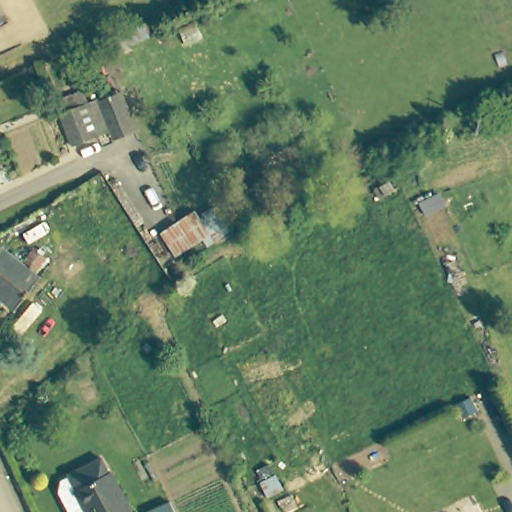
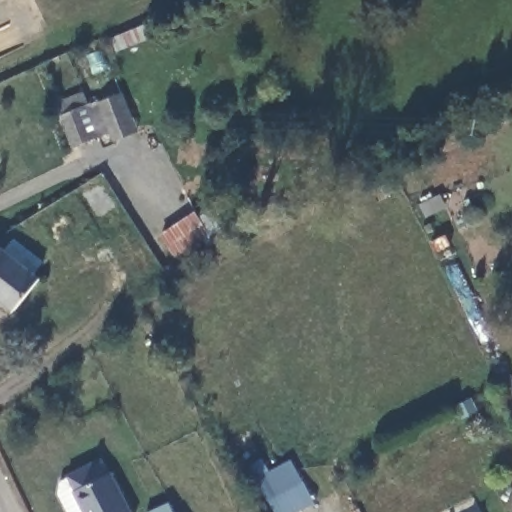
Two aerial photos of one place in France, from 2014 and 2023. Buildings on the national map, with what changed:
unchanged [(60,114),(97,99),(110,126),(72,142),(60,114)]
unchanged [(156,277),(136,241),(170,222),(191,258),(156,277)]
unchanged [(10,312),(0,303),(0,253),(36,282),(10,312)]
new [(248,466),(262,457),(269,471),(292,460),(314,502),(295,512),(276,512),(248,466)]
unchanged [(100,463),(131,512),(64,512),(57,501),(69,479),(100,463)]
unchanged [(172,505),(176,512),(156,512),(172,505)]

